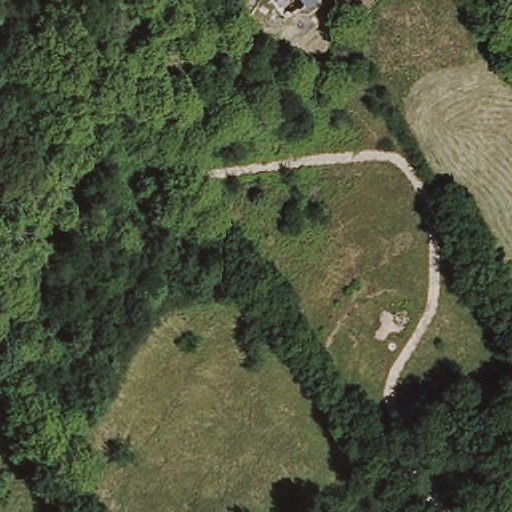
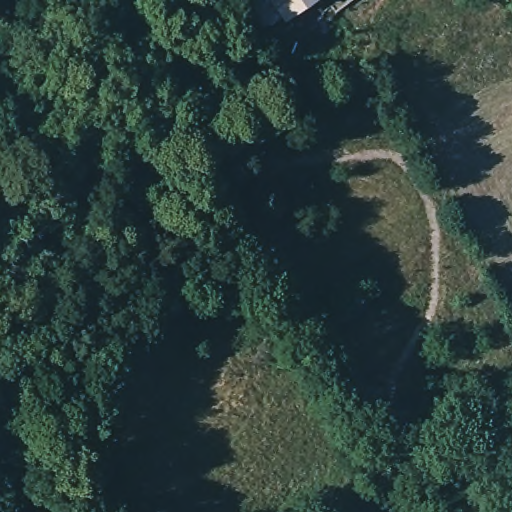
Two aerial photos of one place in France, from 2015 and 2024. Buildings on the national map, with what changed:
unchanged [(266,0),(299,0),(270,11),(266,0)]

